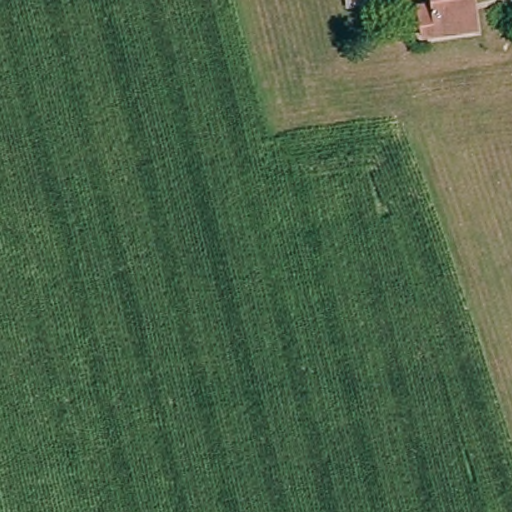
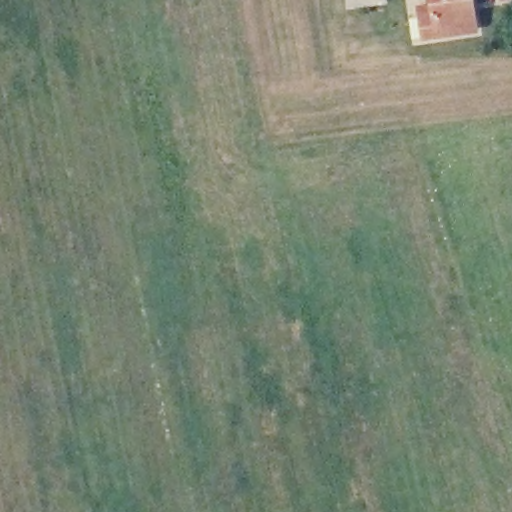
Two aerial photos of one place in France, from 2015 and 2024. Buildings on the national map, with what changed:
unchanged [(365,10),(354,13),(352,0),(363,0),(365,10)]
unchanged [(466,33),(425,40),(422,19),(436,16),(434,0),(473,0),(474,8),(476,31),(466,33)]

